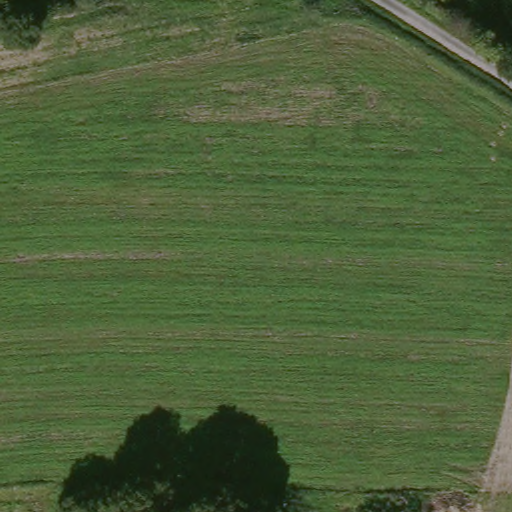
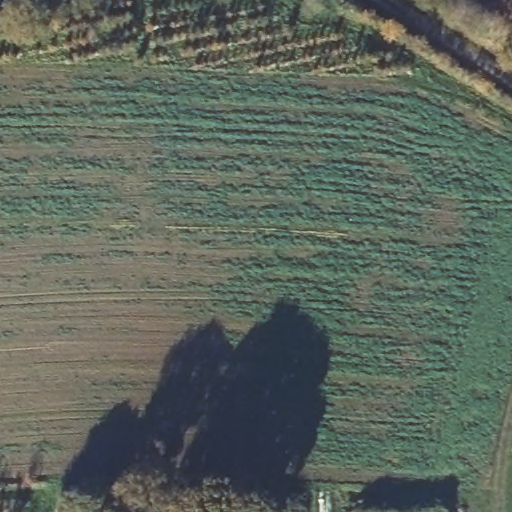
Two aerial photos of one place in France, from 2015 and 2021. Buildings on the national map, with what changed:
[]

